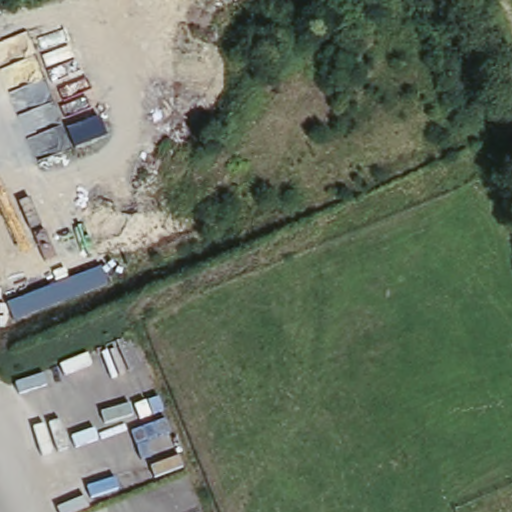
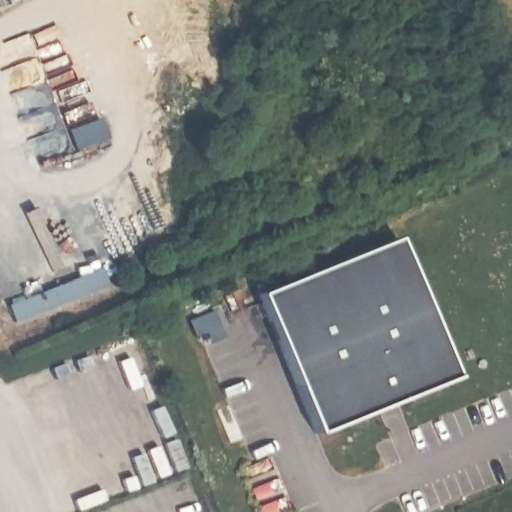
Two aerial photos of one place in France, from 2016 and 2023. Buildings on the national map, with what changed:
new [(395,237),(452,381),(304,437),(245,295),(395,237)]

